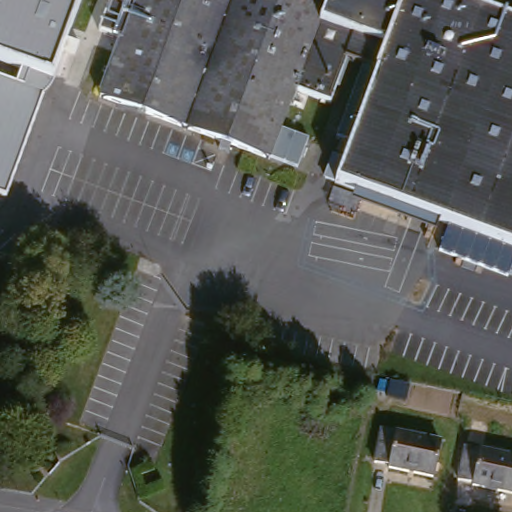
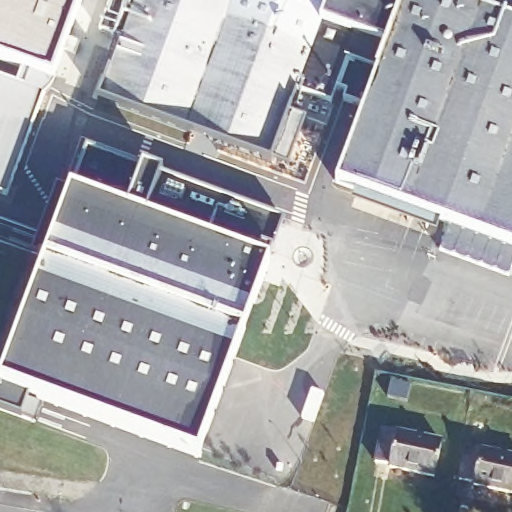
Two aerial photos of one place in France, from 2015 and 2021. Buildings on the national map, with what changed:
unchanged [(0,200),(0,88),(2,83),(22,90),(27,76),(0,66),(0,0),(91,0),(59,88),(56,86),(51,100),(12,204),(0,200)]
unchanged [(397,209),(341,190),(382,79),(352,68),(336,111),(302,99),(277,165),(239,152),(236,161),(226,157),(229,149),(175,130),(153,123),(107,106),(145,0),(368,0),(360,24),(367,27),(361,43),(363,44),(390,54),(409,0),(439,0),(512,26),(512,250),(437,224),(432,235),(413,229),(417,217),(397,209)]
new [(0,409),(0,382),(72,189),(86,146),(144,168),(163,175),(284,219),(270,262),(199,455),(31,395),(22,417),(0,409)]
unchanged [(442,446),(433,481),(391,473),(390,468),(376,465),(384,433),(442,446)]
unchanged [(512,493),(476,485),(461,478),(467,447),(512,456),(512,493)]

